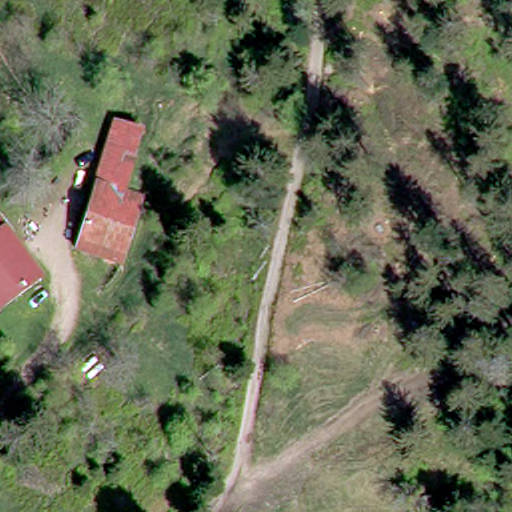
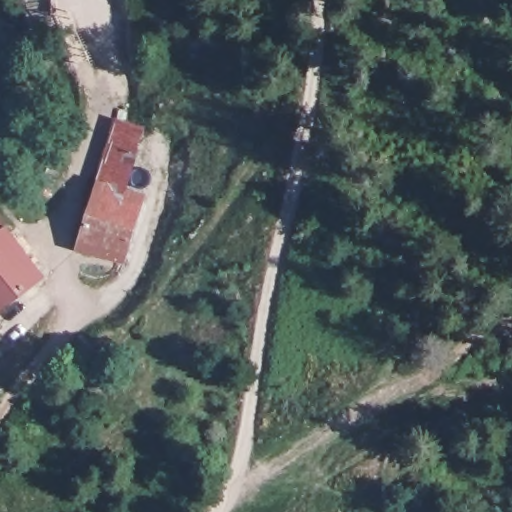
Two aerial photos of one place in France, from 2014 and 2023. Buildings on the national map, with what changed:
unchanged [(79,251),(95,179),(103,118),(131,122),(122,182),(145,190),(130,260),(79,251)]
unchanged [(21,276),(27,284),(18,291),(12,283),(0,292),(0,220),(34,266),(21,276)]

